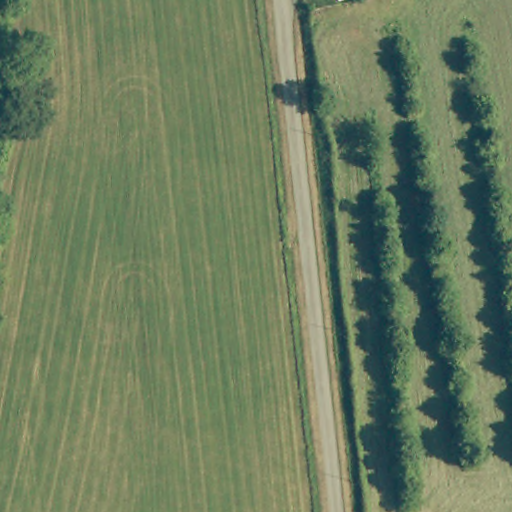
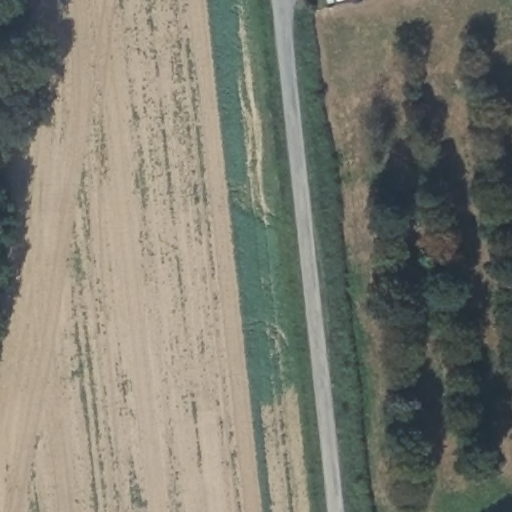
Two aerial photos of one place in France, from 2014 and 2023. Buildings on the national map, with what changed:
[]

